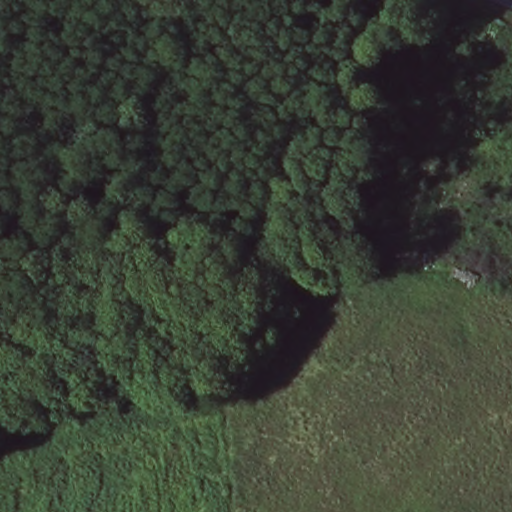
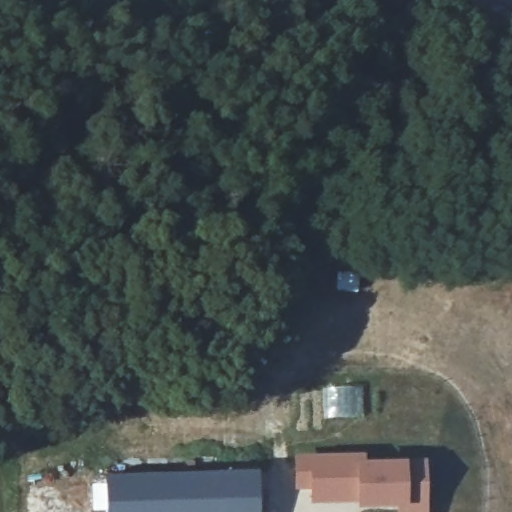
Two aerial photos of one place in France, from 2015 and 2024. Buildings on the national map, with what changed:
new [(356,461),(410,460),(425,460),(425,512),(397,512),(397,505),(357,507),(357,500),(310,504),(310,489),(294,490),(294,453),(358,453),(356,461)]
new [(259,512),(105,512),(104,474),(258,468),(259,512)]

